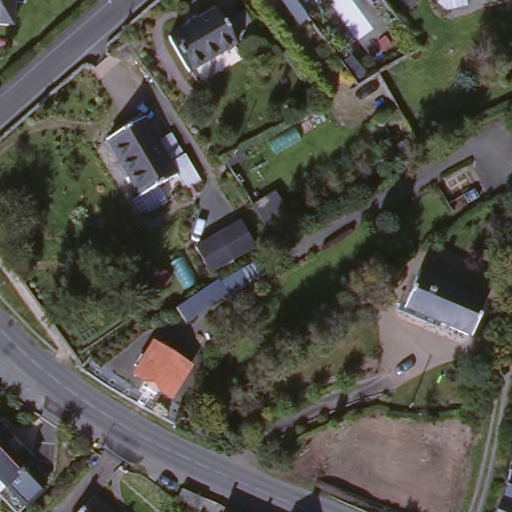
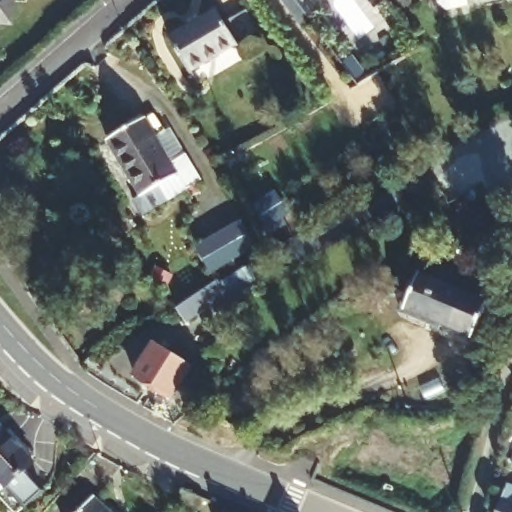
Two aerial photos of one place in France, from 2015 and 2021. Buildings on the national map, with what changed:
unchanged [(0,25),(0,0),(13,0),(10,26),(0,25)]
unchanged [(381,20),(368,0),(402,0),(406,6),(381,20)]
unchanged [(434,0),(435,0),(465,0),(467,7),(440,13),(434,0)]
unchanged [(193,76),(166,38),(211,8),(237,43),(193,76)]
unchanged [(140,219),(130,202),(136,199),(100,140),(143,116),(169,158),(186,148),(206,180),(189,190),(178,174),(154,188),(165,204),(140,219)]
unchanged [(174,304),(224,267),(219,251),(250,220),(238,208),(276,194),(290,212),(283,219),(287,231),(275,240),(281,257),(190,320),(174,304)]
unchanged [(406,313),(418,271),(488,296),(471,338),(406,313)]
unchanged [(169,399),(129,378),(146,342),(194,364),(169,399)]
unchanged [(25,476),(18,483),(36,499),(24,512),(3,512),(0,509),(0,451),(25,476)]
unchanged [(512,512),(509,512),(495,498),(512,482),(512,512)]
unchanged [(92,496),(107,512),(77,512),(92,496)]
unchanged [(233,512),(229,512),(230,511),(233,512)]

